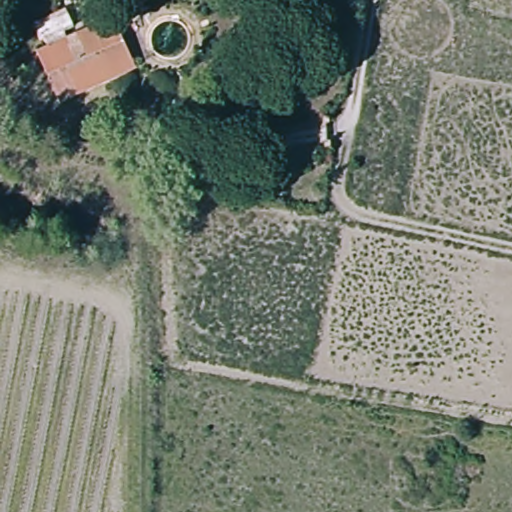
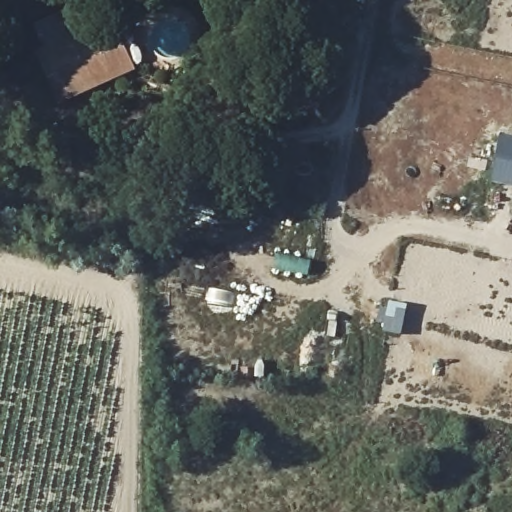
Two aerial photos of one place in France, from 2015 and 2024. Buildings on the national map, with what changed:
new [(150,4),(122,13),(118,0),(148,0),(150,4)]
unchanged [(135,71),(59,105),(35,52),(112,20),(135,71)]
new [(500,136),(512,138),(512,189),(492,185),(500,136)]

